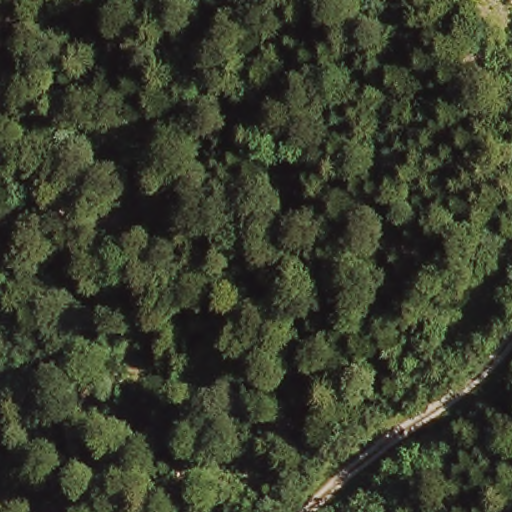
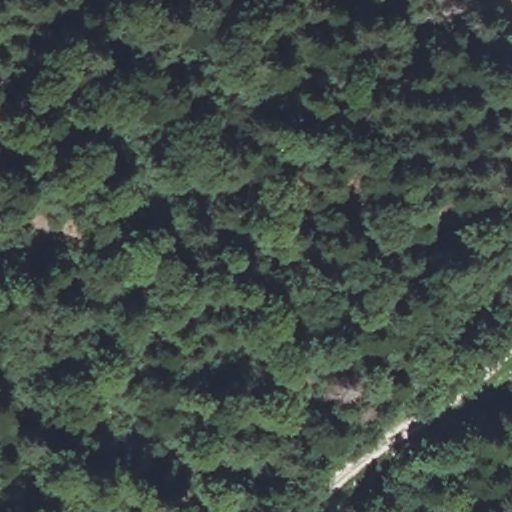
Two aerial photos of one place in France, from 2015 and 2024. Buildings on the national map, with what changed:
unchanged [(512,281),(496,280),(494,255),(512,258),(512,281)]

